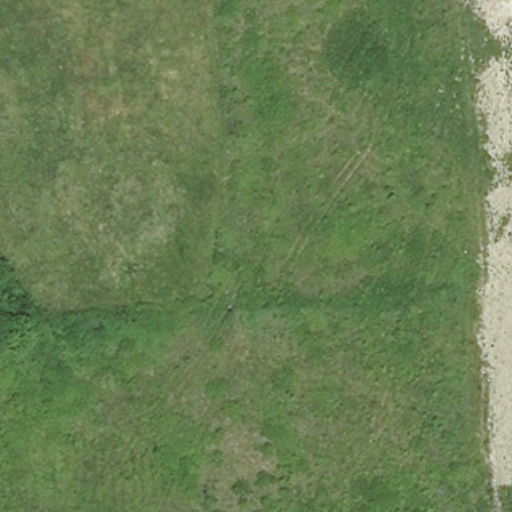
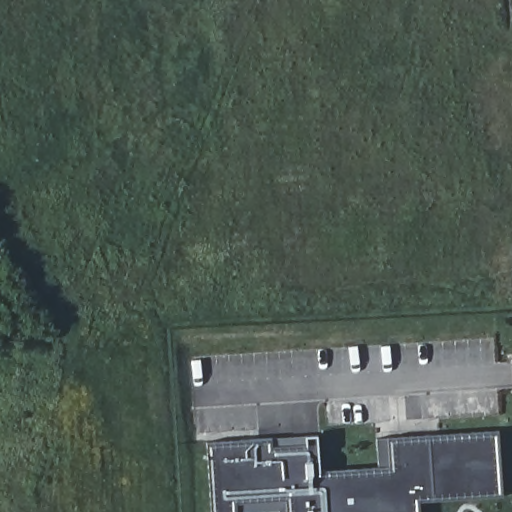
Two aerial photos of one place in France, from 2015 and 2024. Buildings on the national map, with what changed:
new [(420,501),(420,512),(284,512),(284,499),(234,502),(234,512),(212,512),(209,441),(314,436),(316,472),(391,467),(389,438),(499,430),(503,494),(420,501)]

